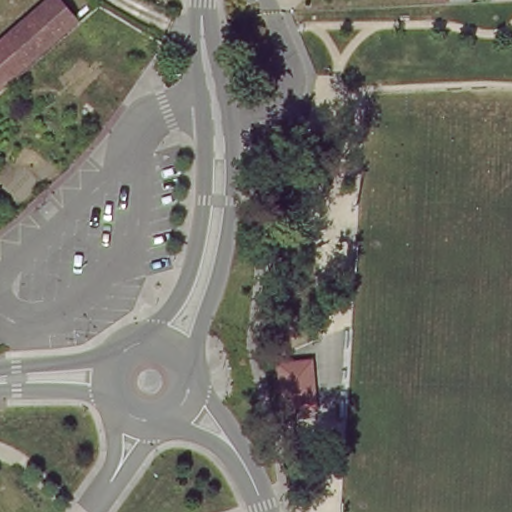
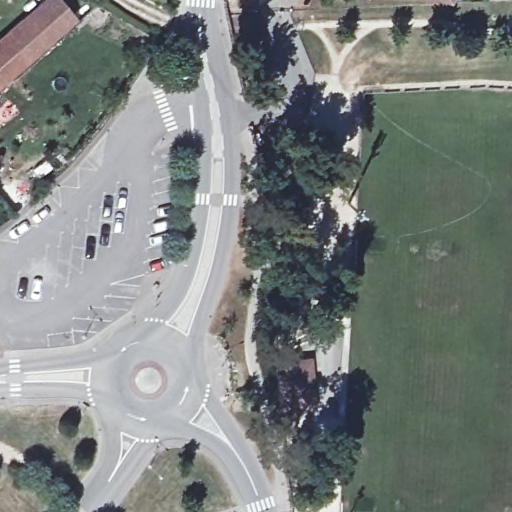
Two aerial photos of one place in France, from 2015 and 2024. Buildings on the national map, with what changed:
unchanged [(81,17),(0,87),(0,39),(45,0),(65,0),(81,17)]
unchanged [(447,1),(444,0),(448,0),(447,1)]
unchanged [(281,409),(277,360),(310,357),(313,406),(281,409)]

